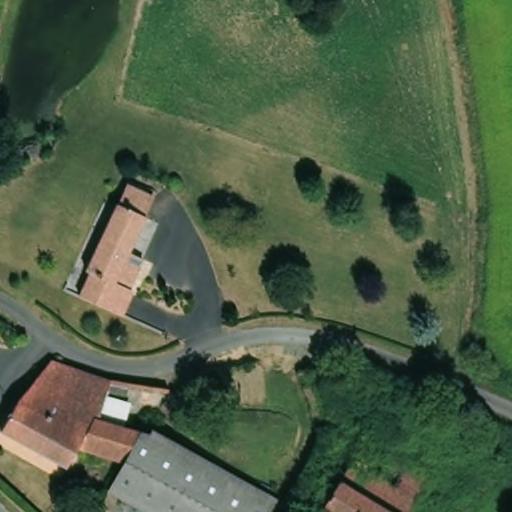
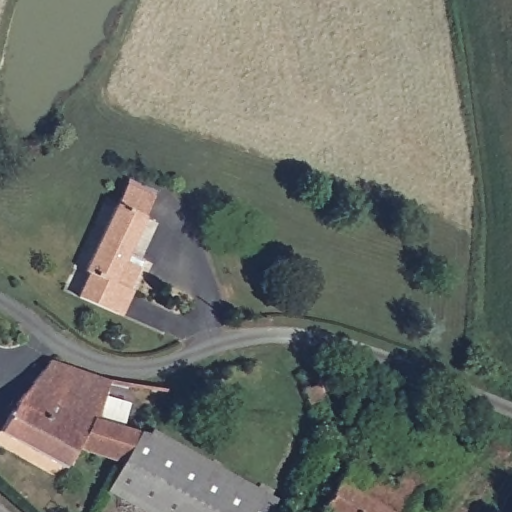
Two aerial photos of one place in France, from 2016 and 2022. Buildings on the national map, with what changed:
unchanged [(128,287),(118,310),(85,296),(79,293),(90,269),(85,267),(126,181),(153,193),(128,249),(142,255),(129,285),(128,287)]
unchanged [(51,361),(107,380),(110,381),(98,422),(80,448),(66,469),(0,432),(16,403),(51,361)]
unchanged [(331,417),(314,423),(303,391),(320,386),(331,417)]
unchanged [(270,512),(145,512),(108,492),(124,463),(80,448),(98,422),(149,437),(152,432),(276,501),(270,512)]
unchanged [(408,512),(333,512),(322,505),(350,457),(372,470),(388,448),(431,476),(408,512)]

